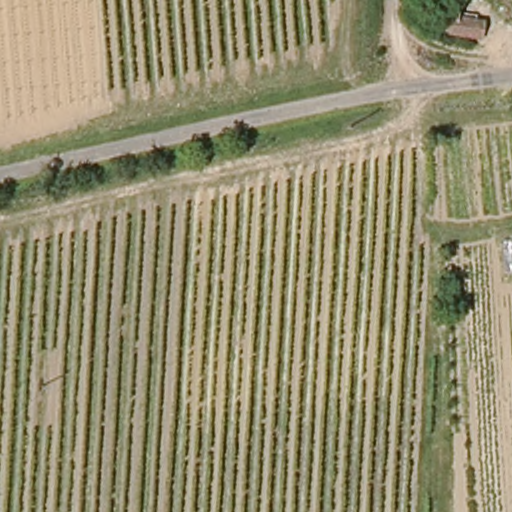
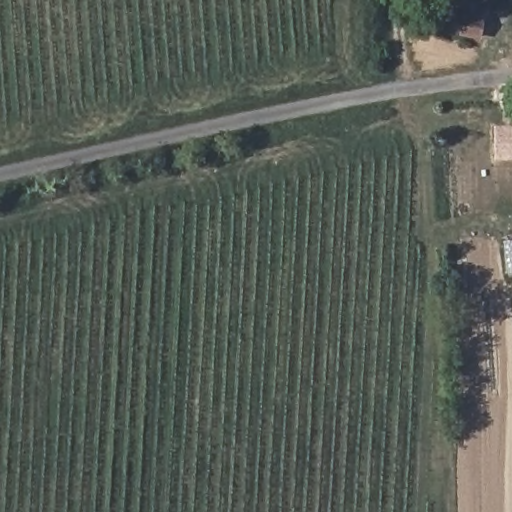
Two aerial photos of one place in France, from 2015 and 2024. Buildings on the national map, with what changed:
unchanged [(428,12),(429,0),(455,0),(454,14),(428,12)]
new [(495,160),(493,125),(512,125),(512,160),(495,160)]

